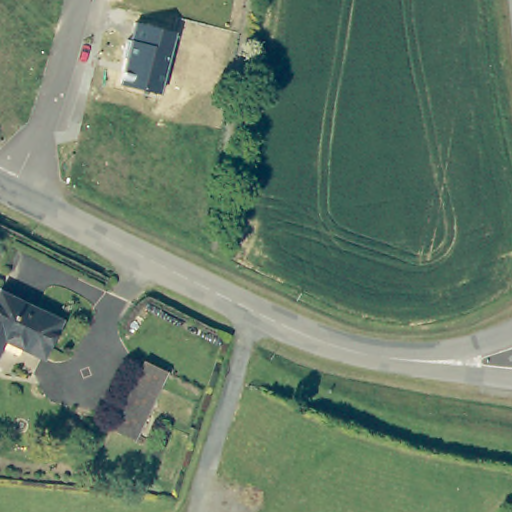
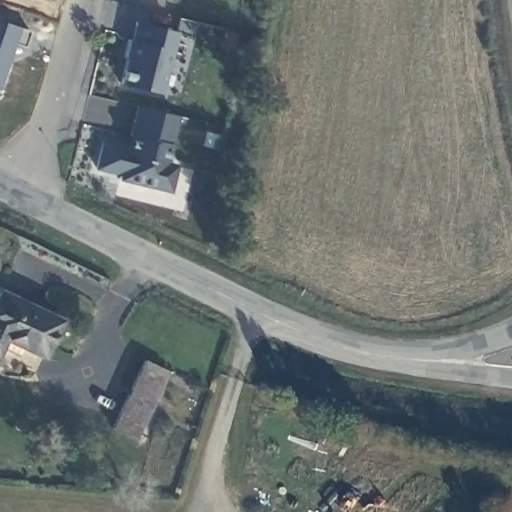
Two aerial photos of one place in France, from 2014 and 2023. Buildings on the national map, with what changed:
unchanged [(159,94),(118,83),(135,23),(174,33),(159,94)]
new [(142,185),(113,178),(113,175),(93,171),(100,138),(125,145),(134,106),(176,117),(165,162),(176,164),(170,191),(142,185)]
unchanged [(56,316),(37,352),(3,335),(0,340),(0,293),(2,289),(56,316)]
unchanged [(167,365),(137,429),(115,419),(145,356),(167,365)]

